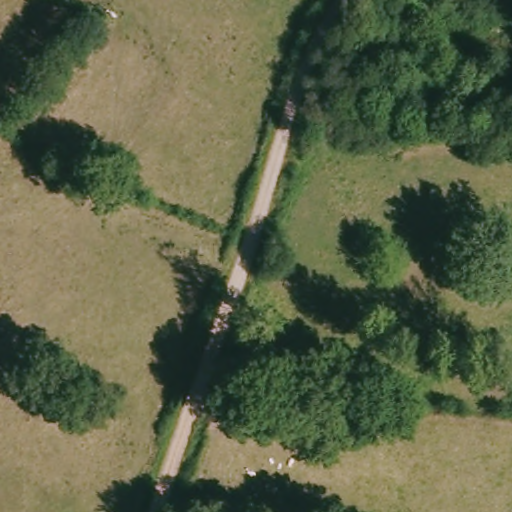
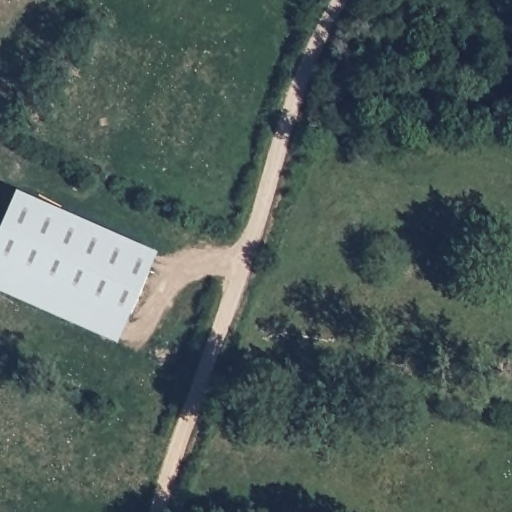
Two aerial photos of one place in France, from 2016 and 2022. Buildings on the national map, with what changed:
new [(0,289),(0,232),(18,190),(158,251),(119,342),(0,289)]

